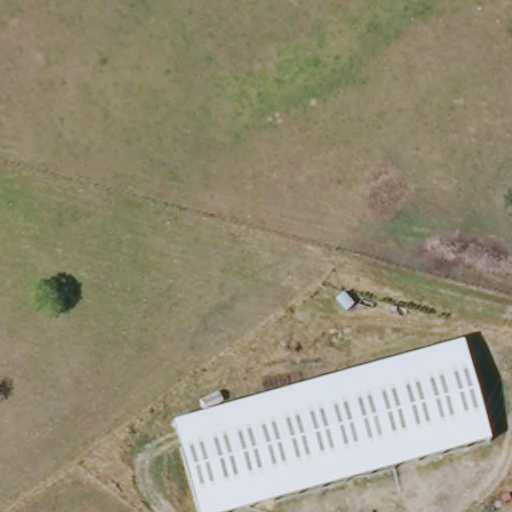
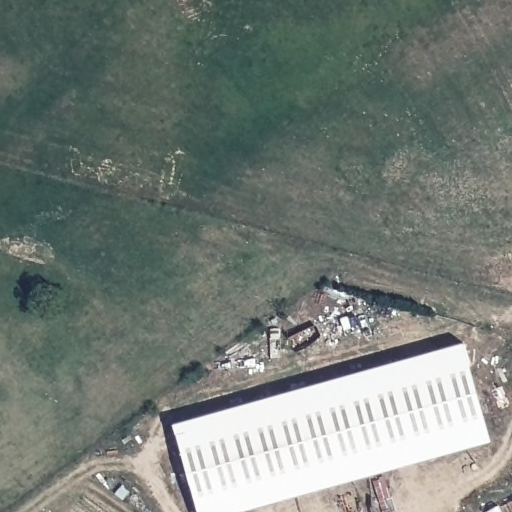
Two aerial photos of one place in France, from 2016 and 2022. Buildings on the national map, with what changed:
unchanged [(196,512),(171,426),(462,345),(490,444),(246,512),(196,512)]

